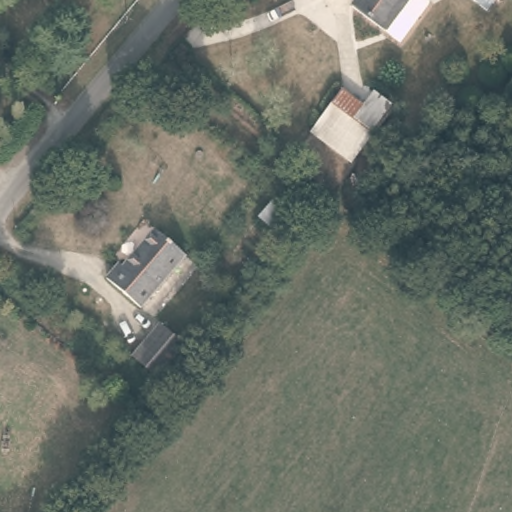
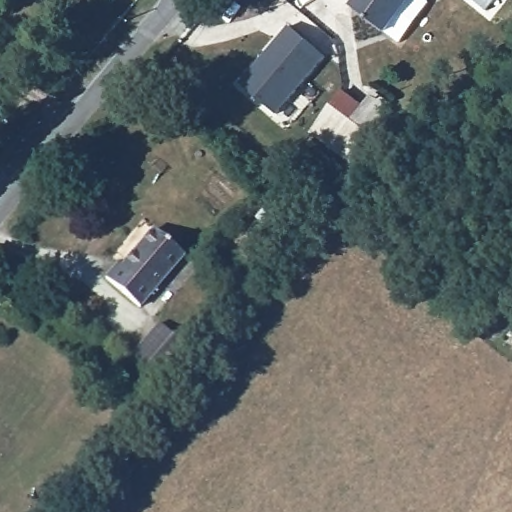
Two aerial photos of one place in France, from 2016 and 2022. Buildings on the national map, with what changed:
unchanged [(358,0),(420,0),(426,5),(400,43),(350,10),(358,0)]
unchanged [(482,10),(469,0),(491,0),(482,10)]
new [(288,25),(325,56),(276,114),(239,84),(288,25)]
unchanged [(347,93),(385,122),(355,162),(316,133),(347,93)]
unchanged [(257,217),(274,199),(296,219),(281,237),(257,217)]
unchanged [(115,263),(120,267),(151,230),(181,254),(140,306),(104,277),(115,263)]
unchanged [(159,323),(187,346),(160,380),(132,355),(159,323)]

